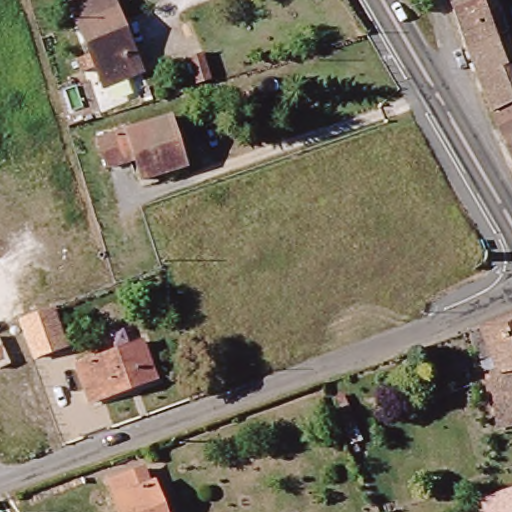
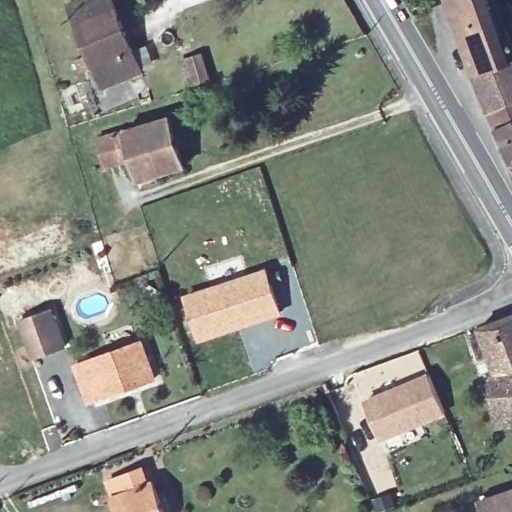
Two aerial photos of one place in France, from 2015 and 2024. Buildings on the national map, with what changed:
unchanged [(75,59),(90,53),(77,23),(71,4),(79,0),(110,0),(114,9),(116,7),(141,72),(104,87),(95,66),(81,72),(75,59)]
unchanged [(448,0),(498,0),(512,31),(466,50),(448,0)]
unchanged [(490,110),(466,50),(512,31),(512,33),(512,158),(506,144),(497,126),(490,110)]
unchanged [(204,53),(212,77),(197,82),(189,58),(204,53)]
unchanged [(141,175),(135,154),(107,162),(98,132),(169,111),(184,161),(141,175)]
new [(267,267),(283,314),(196,343),(182,295),(267,267)]
unchanged [(67,346),(33,359),(19,319),(52,306),(67,346)]
unchanged [(496,373),(480,329),(512,318),(512,426),(498,428),(491,375),(496,373)]
unchanged [(141,341),(154,378),(89,401),(76,364),(141,341)]
new [(432,375),(447,411),(382,439),(367,401),(432,375)]
unchanged [(347,429),(340,411),(349,408),(356,425),(347,429)]
unchanged [(110,481),(144,469),(149,485),(153,483),(164,512),(118,512),(113,498),(116,497),(110,481)]
unchanged [(512,492),(512,512),(487,512),(483,502),(512,492)]

